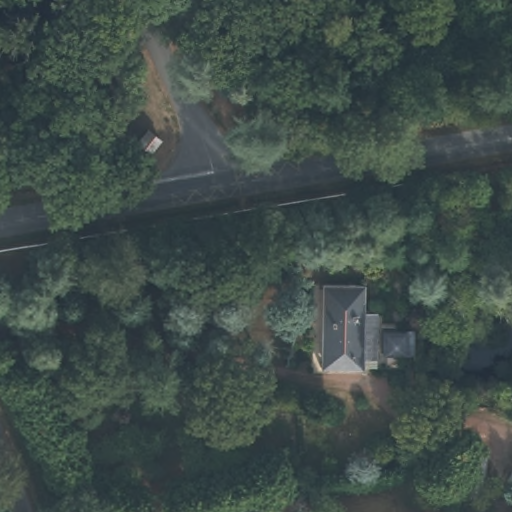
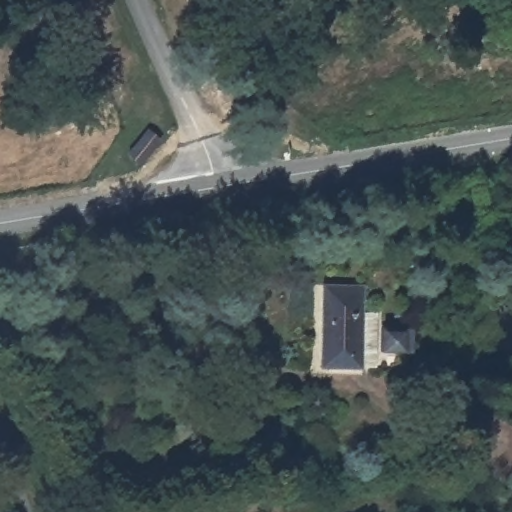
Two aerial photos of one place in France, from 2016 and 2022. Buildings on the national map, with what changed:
unchanged [(137,161),(124,152),(146,127),(157,136),(137,161)]
unchanged [(357,367),(318,368),(322,285),(362,285),(360,311),(377,312),(374,352),(374,367),(357,367)]
unchanged [(502,490),(511,466),(512,462),(512,494),(502,490)]

